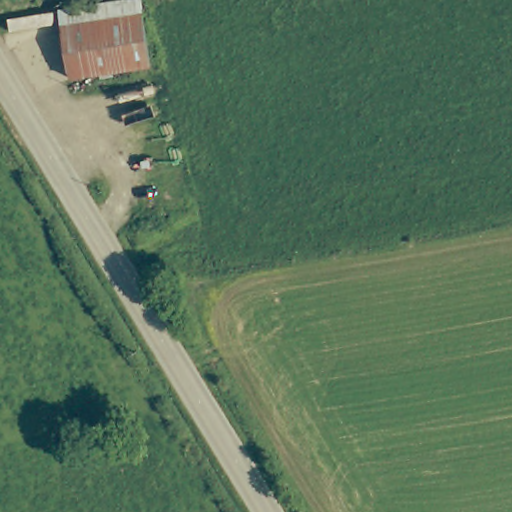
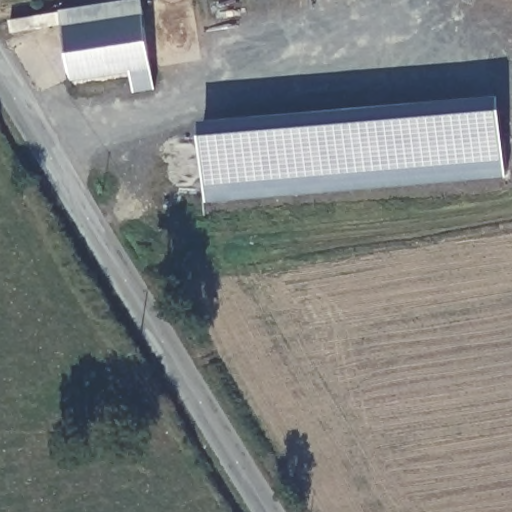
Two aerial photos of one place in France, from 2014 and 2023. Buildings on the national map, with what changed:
unchanged [(150,60),(71,72),(63,19),(142,8),(150,60)]
new [(201,120),(497,94),(507,175),(208,201),(201,120)]

